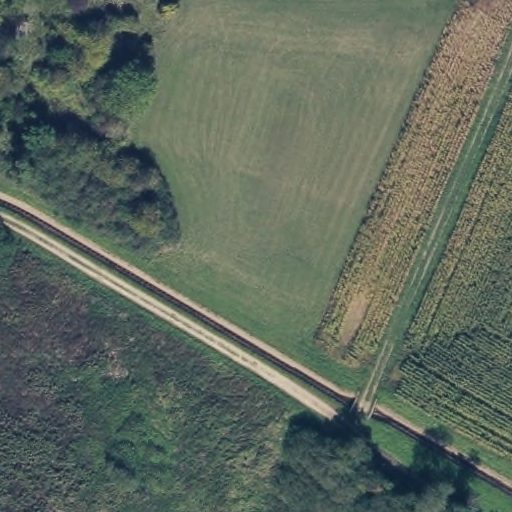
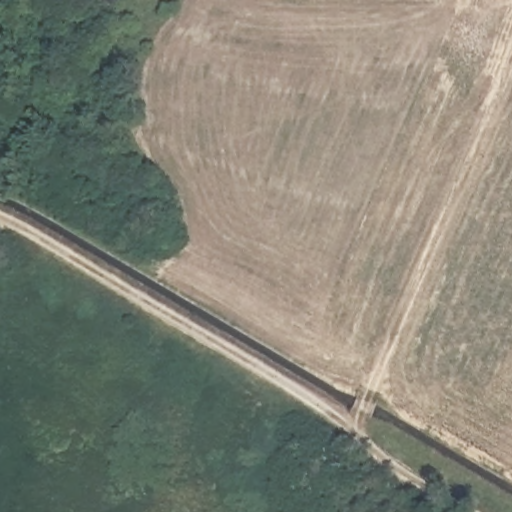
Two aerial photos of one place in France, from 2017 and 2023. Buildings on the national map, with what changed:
[]

